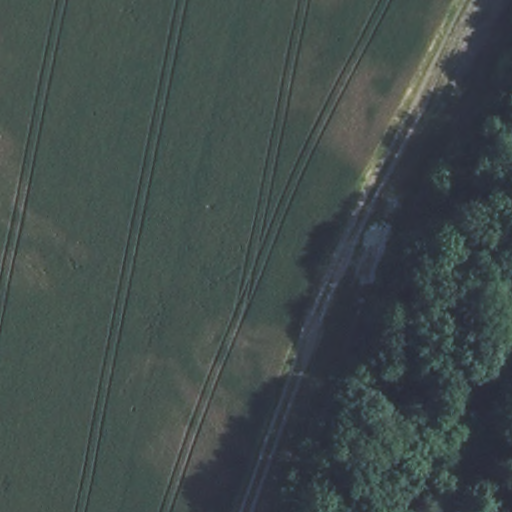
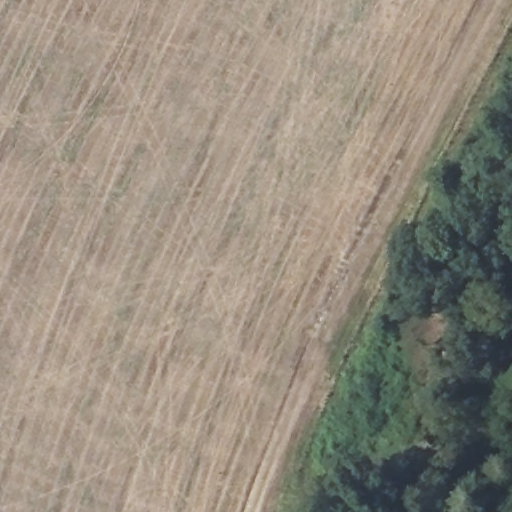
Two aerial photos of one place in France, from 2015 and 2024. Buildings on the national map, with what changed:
[]

